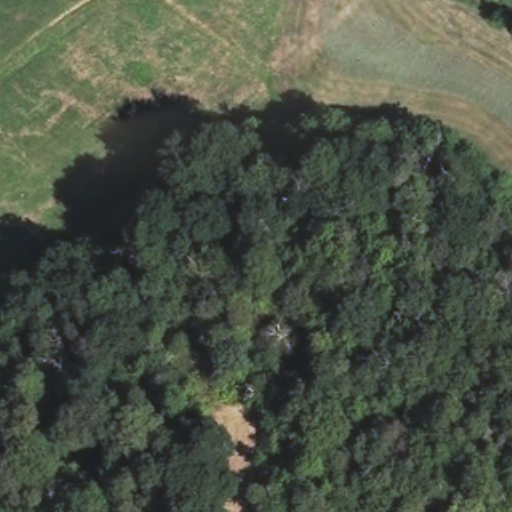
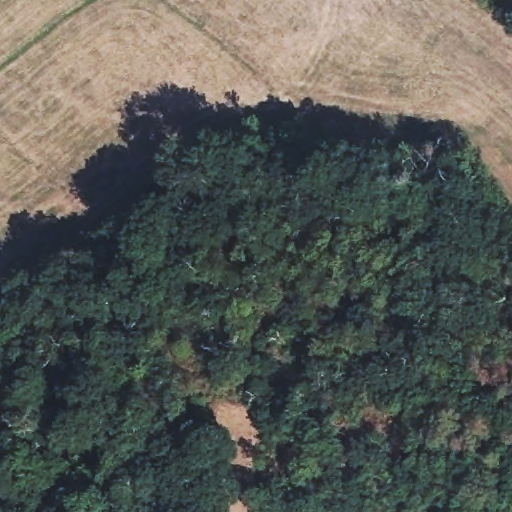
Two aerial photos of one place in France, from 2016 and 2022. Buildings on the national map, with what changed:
[]

